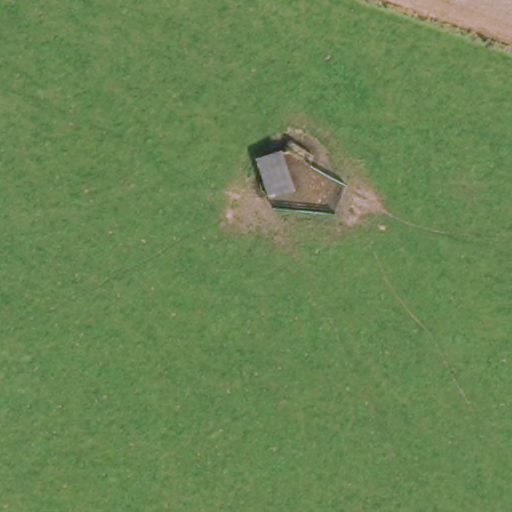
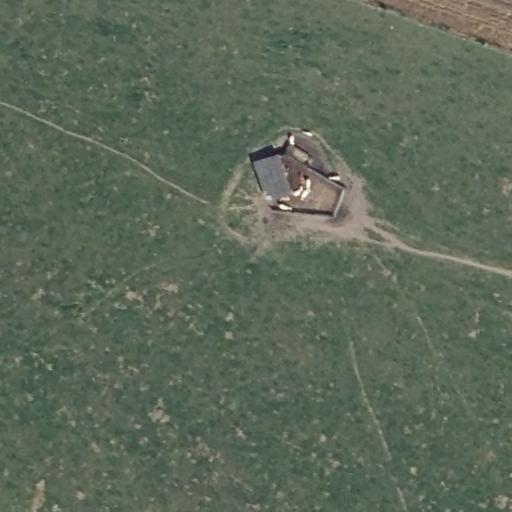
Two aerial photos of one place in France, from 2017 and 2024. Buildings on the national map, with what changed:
unchanged [(257,161),(282,153),(296,191),(268,198),(257,161)]

